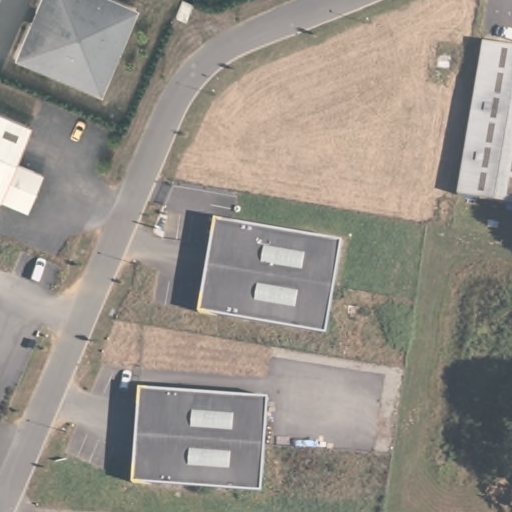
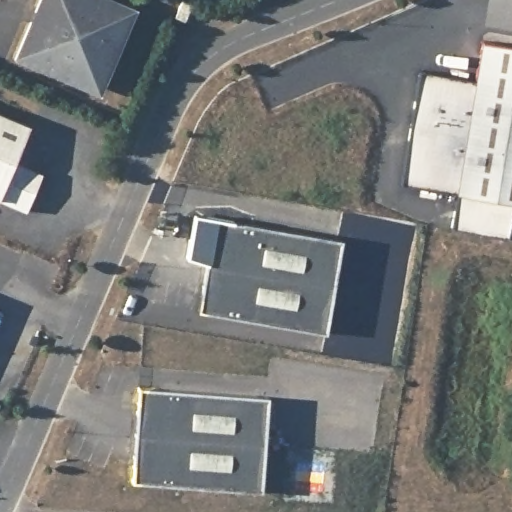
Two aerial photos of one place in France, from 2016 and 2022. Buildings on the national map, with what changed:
unchanged [(103,0),(131,12),(98,89),(21,56),(45,0),(103,0)]
unchanged [(192,17),(183,13),(188,0),(197,0),(199,0),(192,17)]
unchanged [(483,42),(512,47),(512,203),(458,194),(483,42)]
new [(477,81),(458,194),(401,184),(419,72),(477,81)]
unchanged [(15,163),(33,171),(38,186),(28,211),(0,200),(0,113),(31,126),(15,163)]
new [(512,203),(512,218),(509,238),(452,228),(458,194),(512,203)]
unchanged [(343,240),(326,333),(199,310),(216,217),(343,240)]
unchanged [(269,400),(261,494),(132,483),(140,389),(269,400)]

